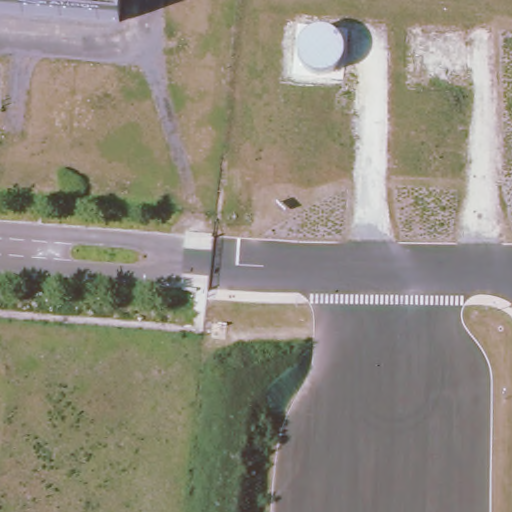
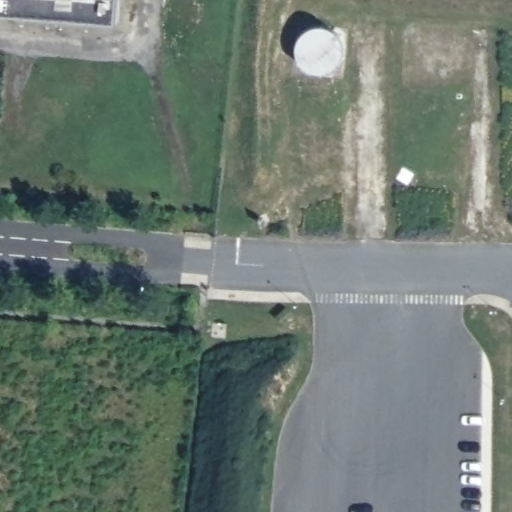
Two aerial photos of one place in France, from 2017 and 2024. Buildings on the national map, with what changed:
unchanged [(0,11),(0,0),(118,0),(116,20),(0,11)]

